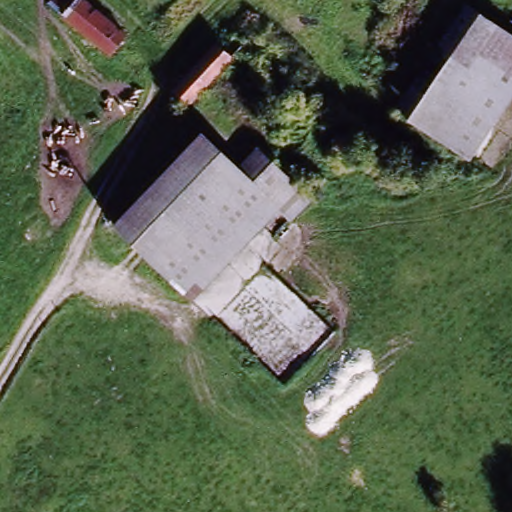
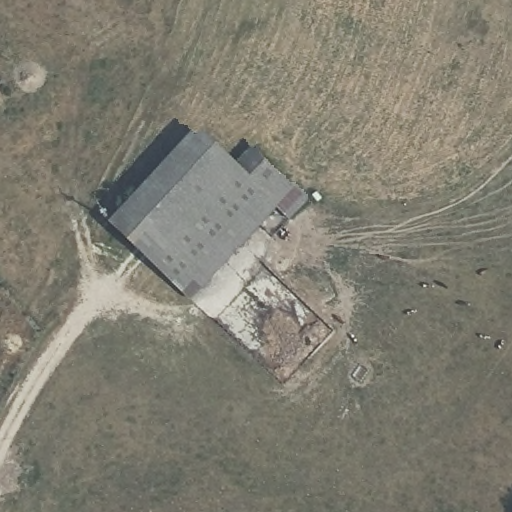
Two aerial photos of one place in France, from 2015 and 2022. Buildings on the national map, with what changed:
demolished [(110,22),(97,37),(54,0),(84,0),(110,22)]
demolished [(477,8),(512,33),(512,90),(468,159),(404,119),(477,8)]
demolished [(237,57),(187,105),(169,87),(219,37),(237,57)]
unchanged [(240,172),(262,150),(297,186),(310,200),(296,213),(287,221),(275,209),(262,222),(187,299),(155,267),(112,225),(202,136),(240,172)]

